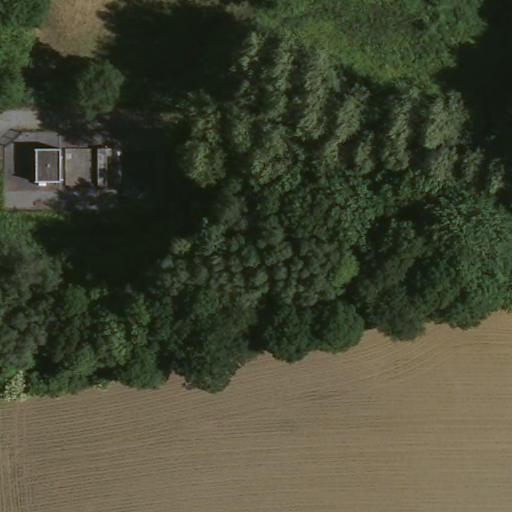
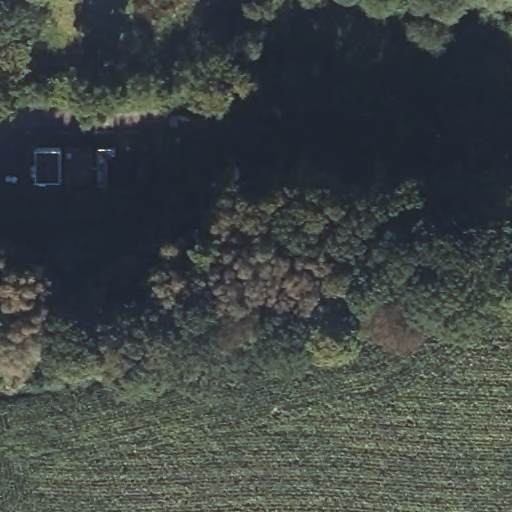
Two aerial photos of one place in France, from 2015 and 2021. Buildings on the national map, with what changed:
unchanged [(59,181),(35,182),(36,148),(60,149),(59,181)]

